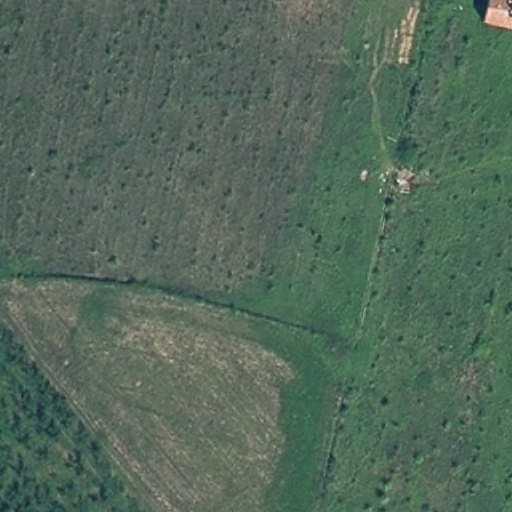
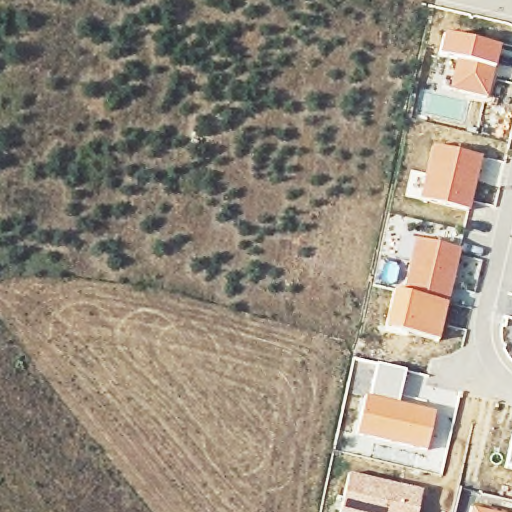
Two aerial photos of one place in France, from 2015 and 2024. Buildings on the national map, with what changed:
demolished [(512,8),(508,30),(480,27),(484,0),(504,0),(512,2),(512,8)]
new [(485,100),(430,86),(443,36),(497,49),(485,100)]
new [(468,212),(420,201),(432,146),(480,158),(468,212)]
new [(415,239),(456,249),(451,273),(454,273),(447,304),(403,293),(415,239)]
new [(392,291),(403,293),(447,304),(438,341),(383,328),(392,291)]
new [(426,451),(355,435),(365,398),(367,398),(376,364),(404,371),(398,395),(389,393),(387,402),(435,413),(426,451)]
new [(512,438),(512,471),(505,469),(512,438)]
new [(416,512),(339,512),(347,476),(421,493),(416,512)]

